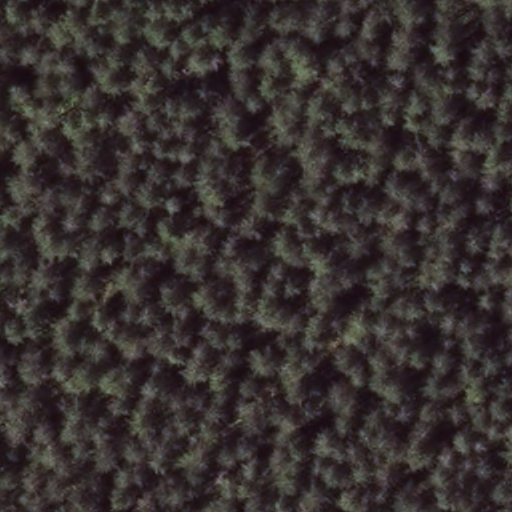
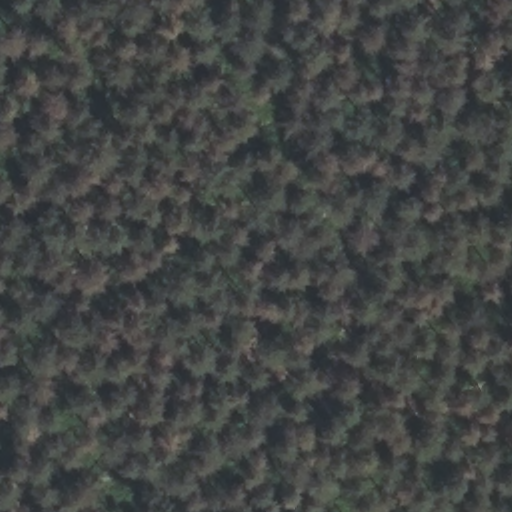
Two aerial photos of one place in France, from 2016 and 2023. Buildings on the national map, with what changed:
[]

